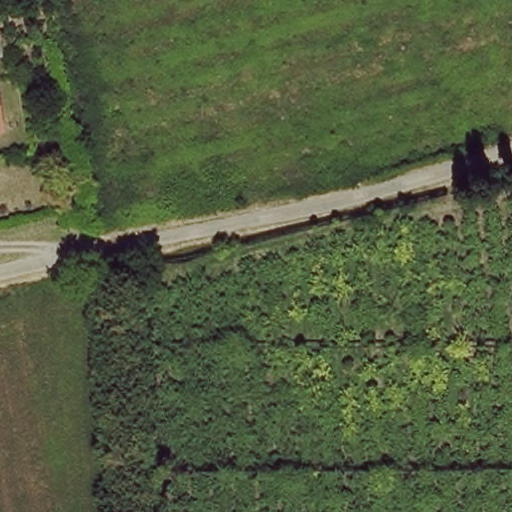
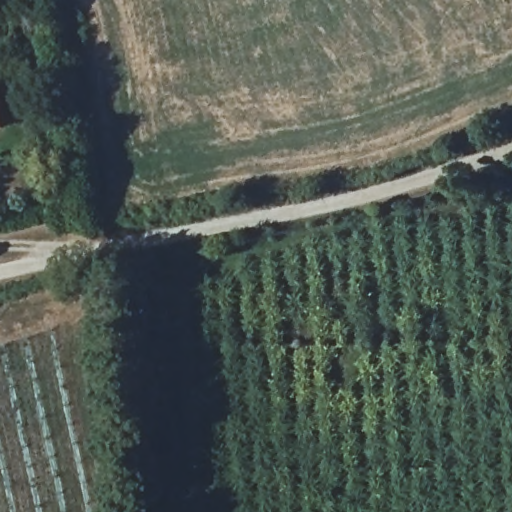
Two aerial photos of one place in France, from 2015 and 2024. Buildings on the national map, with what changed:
unchanged [(0,132),(0,127),(1,132),(0,132)]

